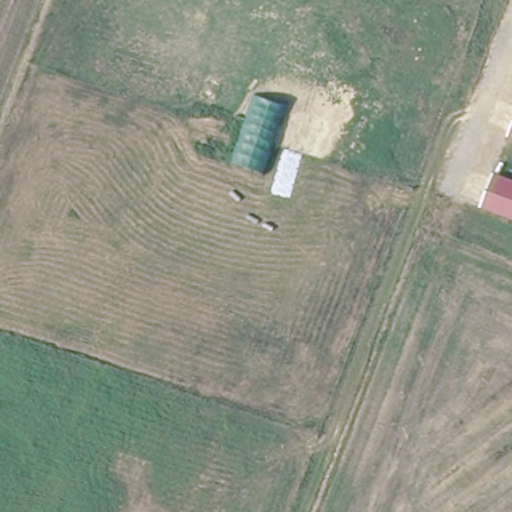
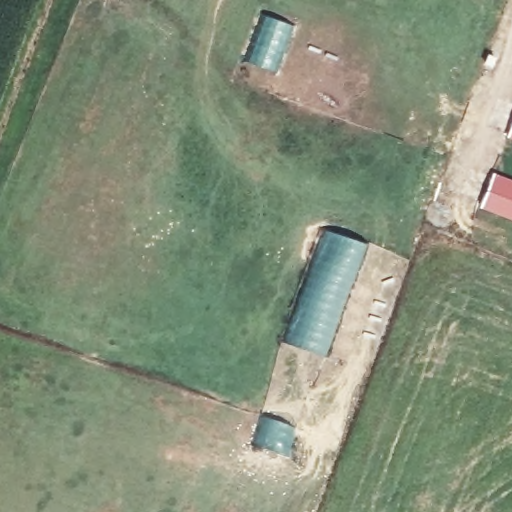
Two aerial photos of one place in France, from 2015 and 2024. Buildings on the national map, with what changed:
unchanged [(512,127),(512,135),(509,133),(512,127)]
unchanged [(512,217),(480,203),(494,170),(512,178),(512,217)]
new [(311,258),(324,228),(367,243),(326,356),(282,341),(311,258)]
new [(261,415),(296,427),(288,456),(252,443),(261,415)]

